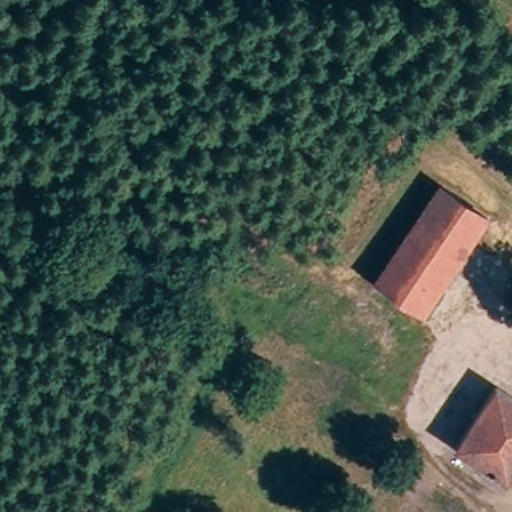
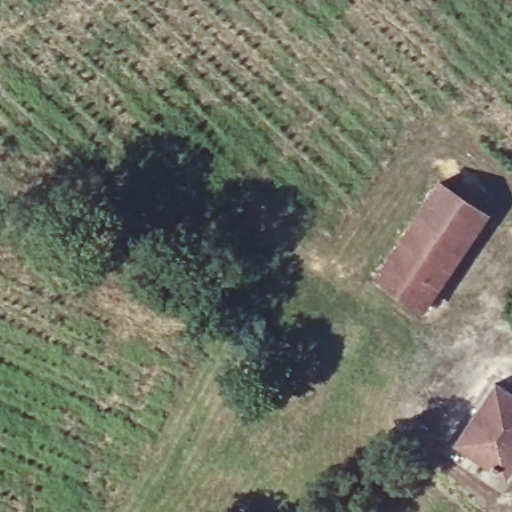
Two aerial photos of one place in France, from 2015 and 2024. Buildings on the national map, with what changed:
unchanged [(421,307),(379,278),(440,185),(484,215),(421,307)]
unchanged [(459,440),(500,382),(512,389),(512,474),(499,466),(459,440)]

